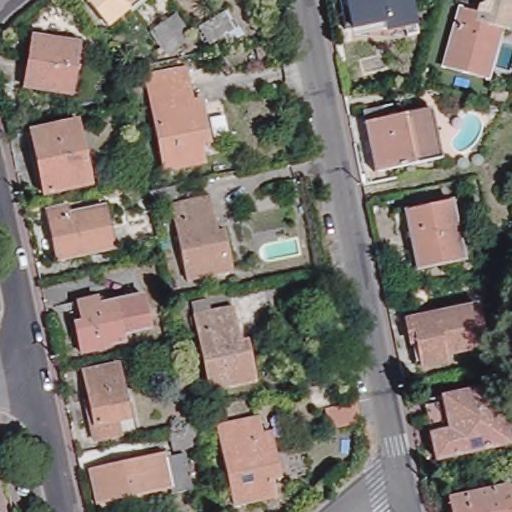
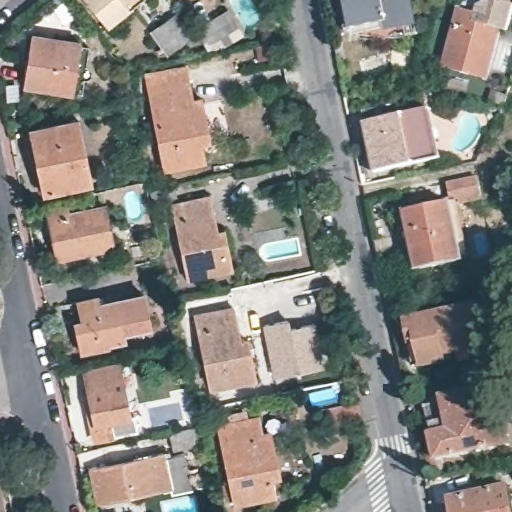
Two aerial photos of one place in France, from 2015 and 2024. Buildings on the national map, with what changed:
unchanged [(91,0),(130,0),(107,19),(91,0)]
unchanged [(392,22),(391,15),(349,24),(344,0),(416,0),(419,16),(392,22)]
unchanged [(504,28),(490,77),(446,65),(463,6),(479,10),(481,2),(488,0),(509,0),(512,1),(512,23),(510,29),(504,28)]
unchanged [(199,27),(218,17),(226,11),(235,26),(226,31),(208,43),(199,27)]
unchanged [(174,14),(189,35),(166,54),(151,32),(174,14)]
unchanged [(80,91),(73,90),(71,91),(23,85),(30,34),(80,41),(88,42),(80,91)]
unchanged [(191,61),(197,94),(206,92),(215,135),(206,136),(210,155),(169,163),(150,69),(191,61)]
unchanged [(401,108),(404,120),(439,115),(450,162),(383,175),(373,126),(376,125),(374,114),(401,108)]
unchanged [(83,119),(86,136),(95,135),(102,165),(98,165),(101,178),(95,179),(96,182),(48,193),(34,130),(83,119)]
unchanged [(179,185),(181,195),(157,200),(155,191),(179,185)]
unchanged [(214,195),(222,230),(229,229),(237,268),(191,277),(176,202),(214,195)]
unchanged [(455,200),(468,258),(421,268),(407,210),(455,200)]
unchanged [(71,205),(73,215),(108,206),(116,245),(61,258),(50,210),(71,205)]
unchanged [(145,288),(152,320),(123,326),(125,335),(79,345),(73,318),(81,316),(76,295),(98,291),(99,298),(145,288)]
unchanged [(217,298),(219,311),(243,306),(250,340),(256,338),(264,379),(218,390),(200,301),(217,298)]
unchanged [(479,300),(489,337),(448,347),(449,353),(421,360),(411,315),(479,300)]
new [(290,319),(291,327),(320,321),(331,367),(275,378),(264,325),(290,319)]
unchanged [(123,363),(131,399),(135,398),(141,430),(98,440),(91,407),(95,405),(88,371),(123,363)]
unchanged [(500,388),(512,445),(512,447),(439,462),(427,403),(500,388)]
unchanged [(361,422),(330,429),(326,408),(357,402),(361,422)]
unchanged [(263,417),(266,433),(274,430),(284,474),(275,476),(279,493),(237,503),(221,425),(263,417)]
unchanged [(201,427),(204,445),(178,450),(174,433),(201,427)]
unchanged [(168,452),(168,457),(189,452),(196,489),(175,494),(174,489),(103,505),(95,467),(168,452)]
unchanged [(0,512),(0,477),(7,510),(0,512)]
unchanged [(512,485),(512,512),(455,512),(452,498),(512,485)]

